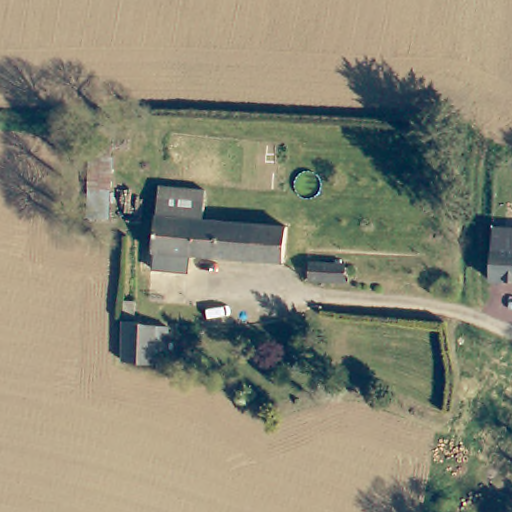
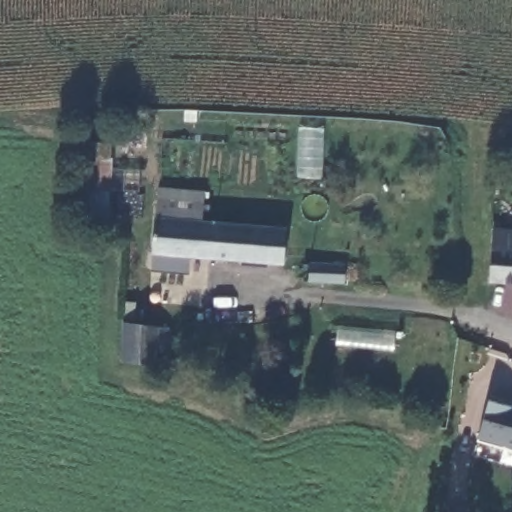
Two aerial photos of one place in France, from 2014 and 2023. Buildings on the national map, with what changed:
unchanged [(92,227),(92,146),(111,146),(111,227),(92,227)]
unchanged [(153,260),(154,225),(156,198),(183,199),(205,200),(204,227),(297,230),(295,266),(190,262),(189,280),(152,277),(153,260)]
unchanged [(490,240),(512,242),(512,293),(489,292),(490,240)]
unchanged [(319,265),(352,266),(352,287),(318,285),(319,265)]
unchanged [(162,361),(154,360),(153,373),(120,370),(123,330),(165,335),(162,361)]
new [(479,440),(489,399),(512,406),(512,449),(479,440)]

